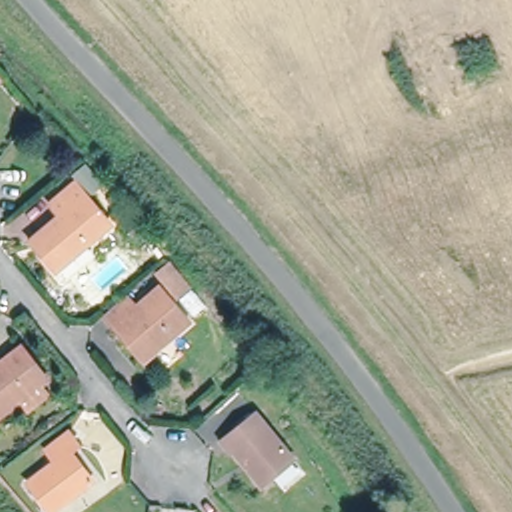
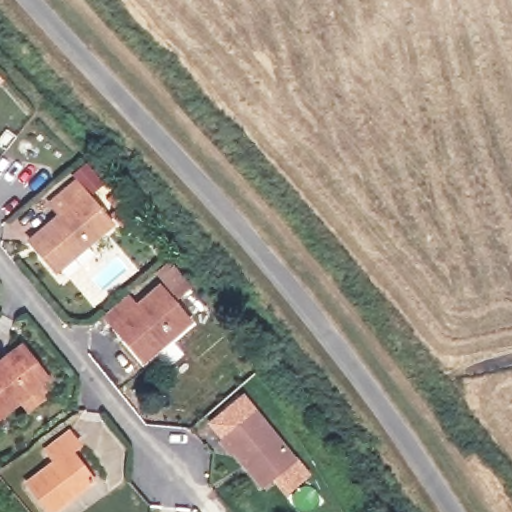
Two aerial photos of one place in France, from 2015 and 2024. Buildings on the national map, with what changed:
unchanged [(89,192),(69,171),(82,160),(90,169),(100,181),(89,192)]
unchanged [(59,215),(49,202),(74,181),(110,224),(58,270),(31,239),(59,215)]
unchanged [(104,315),(115,305),(126,296),(136,307),(160,287),(190,321),(144,361),(129,343),(114,327),(104,315)]
unchanged [(0,416),(0,364),(19,349),(21,347),(46,379),(44,380),(42,382),(51,394),(28,412),(19,401),(0,416)]
unchanged [(294,458),(262,486),(233,451),(230,453),(219,440),(255,411),(294,458)]
unchanged [(65,452),(88,481),(48,512),(45,512),(23,483),(50,462),(41,450),(64,433),(74,446),(65,452)]

